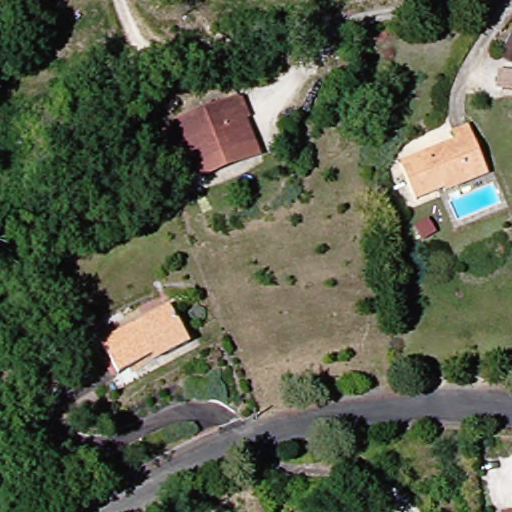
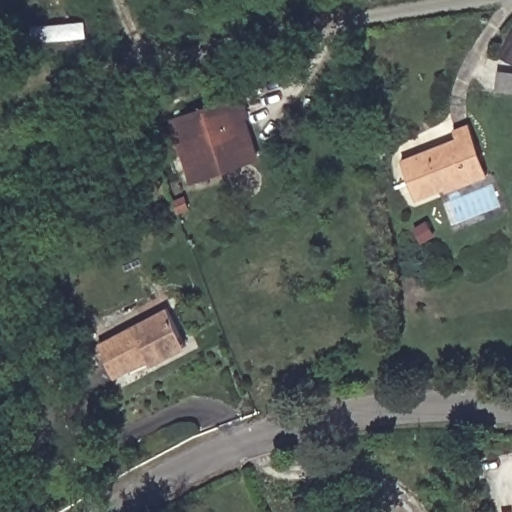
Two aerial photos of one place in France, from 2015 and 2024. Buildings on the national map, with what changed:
unchanged [(512,85),(509,84),(511,65),(512,65),(512,85)]
unchanged [(245,98),(260,144),(196,167),(180,121),(245,98)]
unchanged [(458,192),(457,188),(427,200),(412,161),(468,140),(465,130),(480,125),(490,153),(499,176),(458,192)]
unchanged [(80,295),(63,302),(59,291),(74,283),(80,295)]
unchanged [(165,356),(162,351),(127,369),(112,339),(180,304),(194,330),(198,339),(165,356)]

